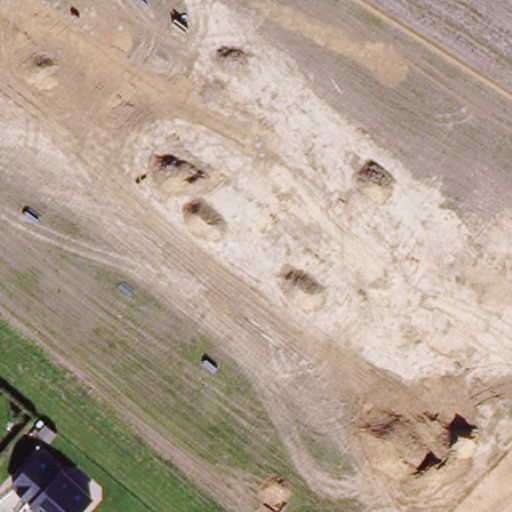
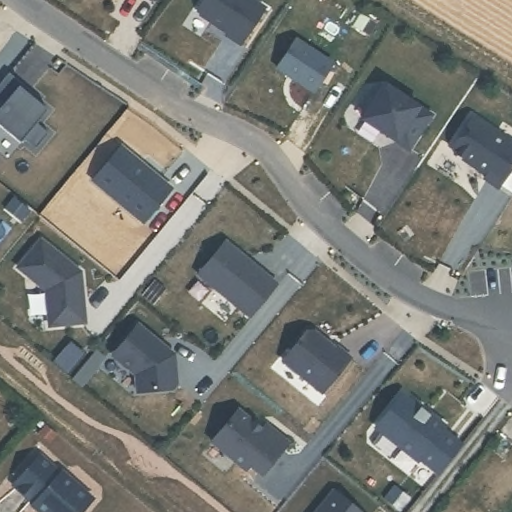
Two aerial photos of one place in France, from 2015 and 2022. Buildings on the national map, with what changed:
new [(252,0),(263,7),(239,44),(225,35),(227,32),(196,12),(203,0),(252,0)]
new [(298,37),(337,65),(316,95),(277,67),(298,37)]
new [(40,98),(37,100),(49,110),(37,123),(50,133),(37,149),(25,139),(21,143),(0,125),(0,110),(3,106),(0,103),(0,84),(10,73),(24,84),(40,98)]
new [(389,88),(431,116),(409,150),(367,122),(389,88)]
new [(472,118),(512,144),(512,170),(499,189),(486,180),(487,177),(450,151),(472,118)]
new [(122,147),(172,189),(144,222),(94,181),(122,147)]
new [(72,265),(81,272),(86,322),(50,326),(47,291),(19,267),(42,240),(72,265)]
new [(226,242),(278,286),(251,319),(198,275),(226,242)]
new [(317,318),(356,351),(358,348),(376,363),(347,397),(291,351),(317,318)]
new [(157,343),(173,356),(176,384),(171,390),(135,392),(136,375),(112,356),(137,326),(157,343)]
new [(419,409),(428,416),(429,415),(446,428),(444,432),(461,447),(438,475),(420,460),(418,462),(380,432),(379,425),(401,395),(419,409)]
new [(253,423),(262,431),(267,425),(289,443),(261,477),(249,466),(245,471),(211,442),(237,411),(253,423)]
unchanged [(47,451),(68,469),(70,467),(76,473),(74,475),(79,479),(82,479),(100,495),(85,512),(51,512),(40,502),(41,500),(21,481),(47,451)]
new [(333,492),(357,512),(316,512),(333,492)]

